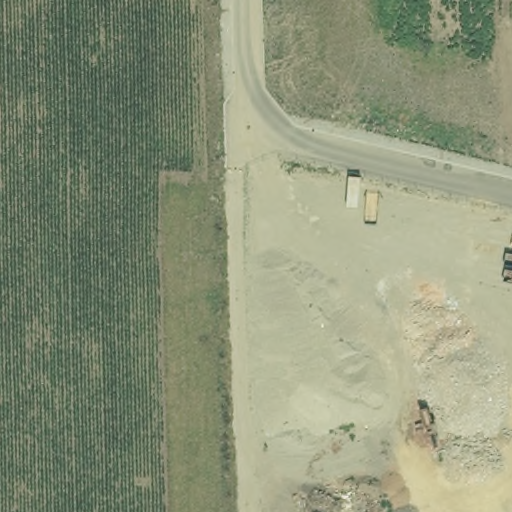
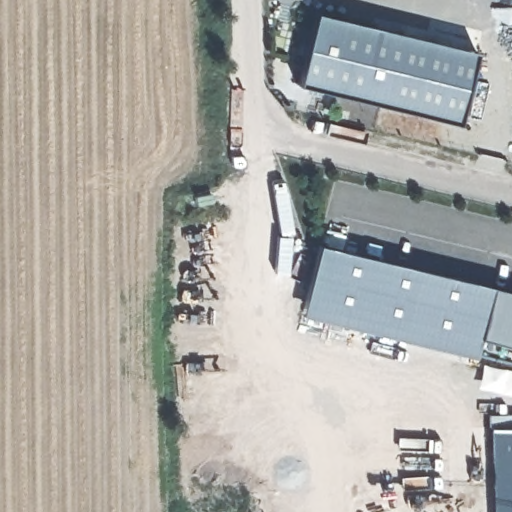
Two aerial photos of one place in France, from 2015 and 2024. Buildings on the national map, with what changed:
new [(484,50),(465,121),(307,84),(324,12),(484,50)]
new [(300,312),(314,244),(512,291),(512,362),(470,352),(300,312)]
new [(494,415),(512,414),(512,512),(497,512),(494,429),(494,415)]

